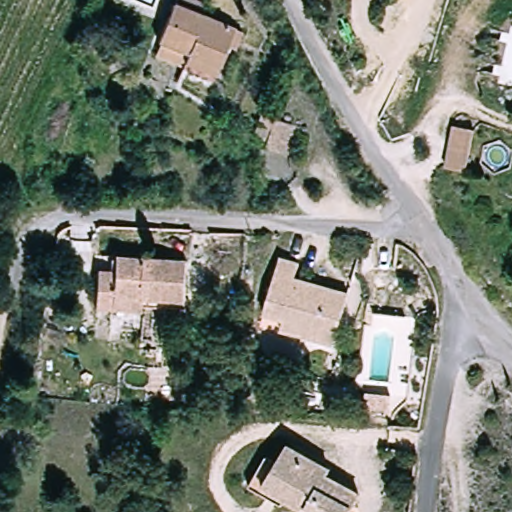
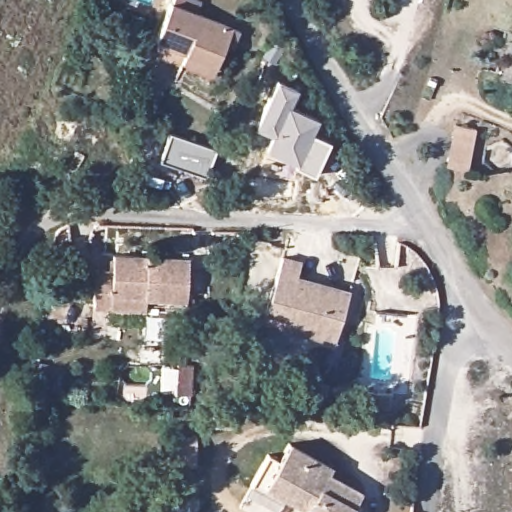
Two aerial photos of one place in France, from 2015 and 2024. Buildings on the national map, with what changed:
unchanged [(190,68),(196,56),(159,37),(180,0),(195,0),(245,26),(223,70),(217,82),(190,68)]
new [(314,173),(293,163),(294,161),(264,147),(271,133),(254,125),(276,77),(297,87),(289,103),(318,117),(311,131),(330,140),(314,173)]
unchanged [(451,121),(473,126),(461,168),(438,161),(451,121)]
new [(205,175),(160,159),(169,131),(214,148),(205,175)]
unchanged [(119,310),(100,308),(102,269),(121,269),(121,253),(194,259),(190,301),(150,298),(149,311),(119,310)]
unchanged [(296,321),(272,314),(286,259),(304,264),(300,278),(353,292),(340,343),(318,339),(319,337),(293,331),(296,321)]
unchanged [(280,476),(287,466),(282,462),(295,442),(335,473),(338,468),(368,493),(355,512),(308,512),(310,510),(288,494),(293,486),(280,476)]
unchanged [(280,506),(254,484),(274,455),(282,462),(287,466),(280,476),(293,486),(288,494),(280,506)]

